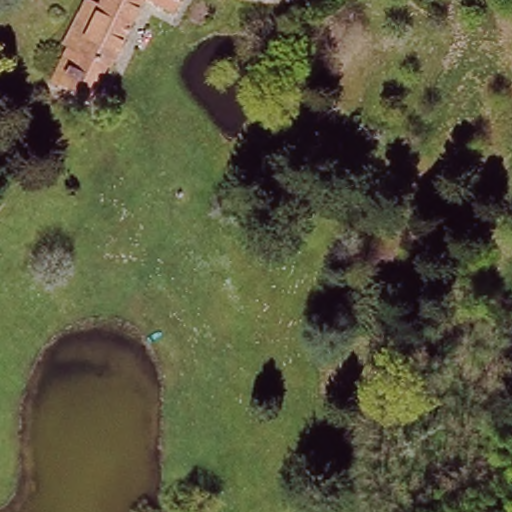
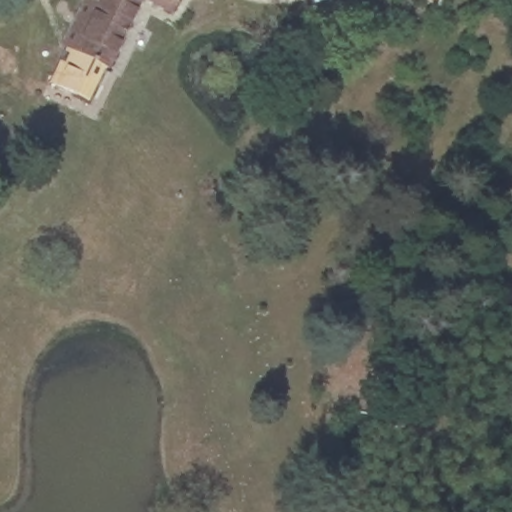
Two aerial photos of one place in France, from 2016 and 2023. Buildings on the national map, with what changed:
unchanged [(101,67),(66,47),(62,46),(87,0),(92,0),(101,4),(103,0),(144,0),(107,71),(101,67)]
unchanged [(176,14),(151,0),(184,0),(176,14)]
unchanged [(101,67),(85,97),(82,96),(49,77),(66,47),(101,67)]

